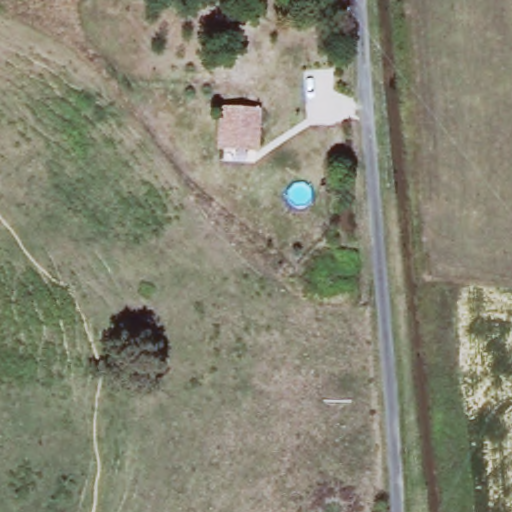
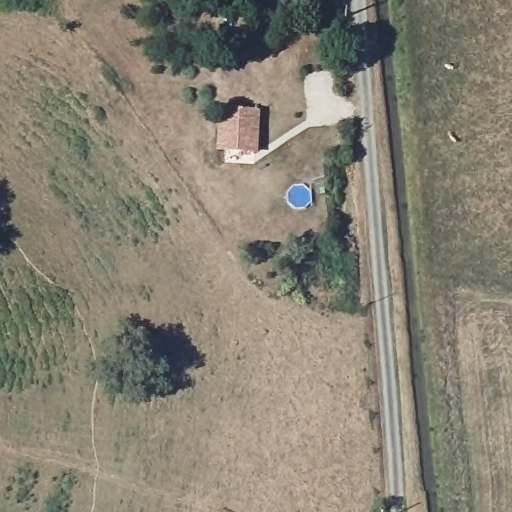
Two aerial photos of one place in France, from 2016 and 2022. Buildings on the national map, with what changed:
unchanged [(256,116),(255,153),(221,152),(223,116),(256,116)]

